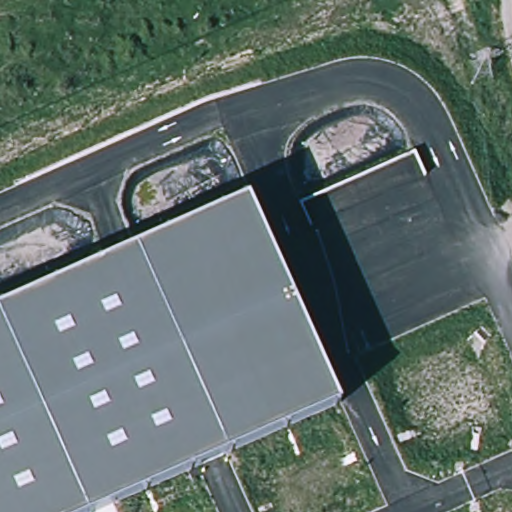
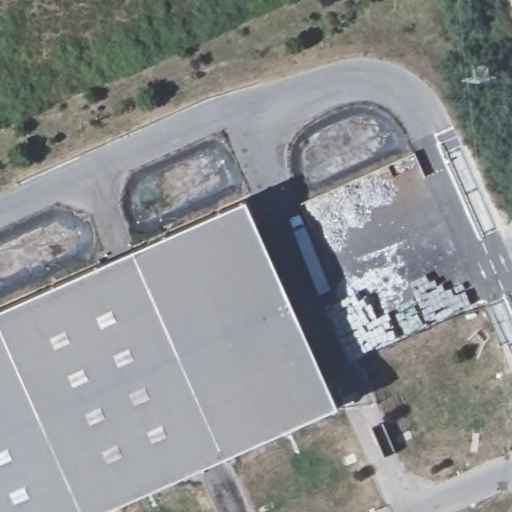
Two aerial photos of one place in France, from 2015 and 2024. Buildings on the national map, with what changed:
unchanged [(97,512),(0,512),(0,309),(248,199),(340,405),(97,512)]

